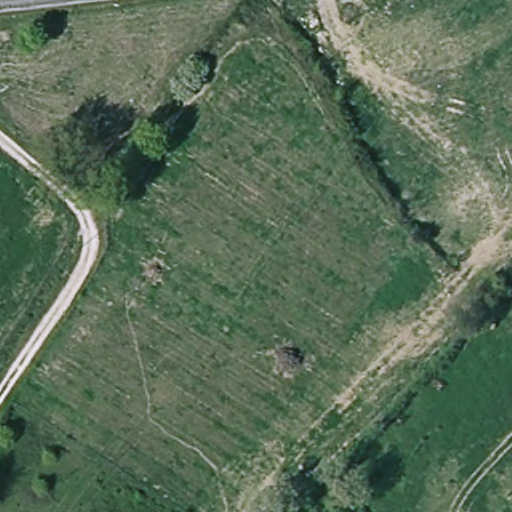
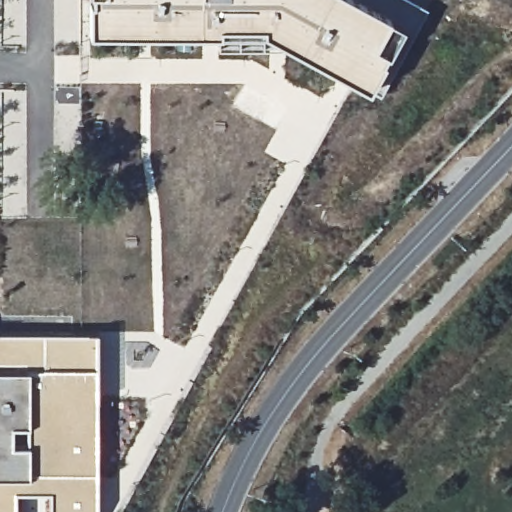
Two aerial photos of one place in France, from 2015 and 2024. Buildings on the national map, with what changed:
new [(380,95),(366,88),(265,32),(264,40),(223,41),(223,33),(90,33),(90,0),(411,0),(428,9),(380,95)]
new [(96,332),(95,368),(95,508),(93,512),(49,512),(50,491),(14,490),(14,512),(0,512),(0,332),(96,332)]

